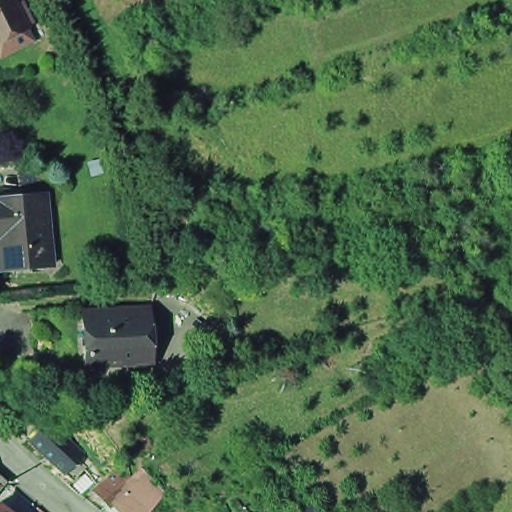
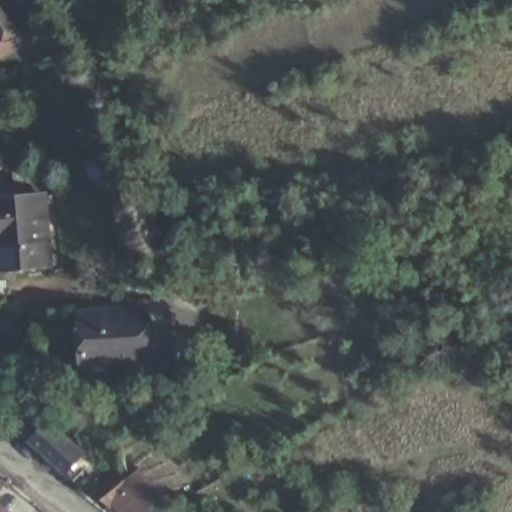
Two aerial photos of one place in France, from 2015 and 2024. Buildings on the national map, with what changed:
unchanged [(0,38),(0,0),(16,0),(28,23),(0,38)]
unchanged [(51,269),(7,274),(0,274),(0,204),(44,199),(51,269)]
unchanged [(63,330),(33,330),(32,304),(62,303),(63,330)]
unchanged [(122,368),(101,368),(88,368),(88,360),(87,318),(154,315),(155,357),(155,367),(122,368)]
unchanged [(62,429),(40,451),(20,431),(42,409),(62,429)]
unchanged [(91,496),(83,489),(46,455),(65,436),(101,469),(95,476),(102,484),(91,496)]
unchanged [(5,482),(0,489),(0,468),(10,477),(5,482)]
unchanged [(121,507),(116,512),(100,495),(119,476),(152,512),(126,512),(121,507)]
unchanged [(17,512),(0,512),(0,501),(2,499),(17,512)]
unchanged [(170,508),(176,512),(168,512),(170,508)]

